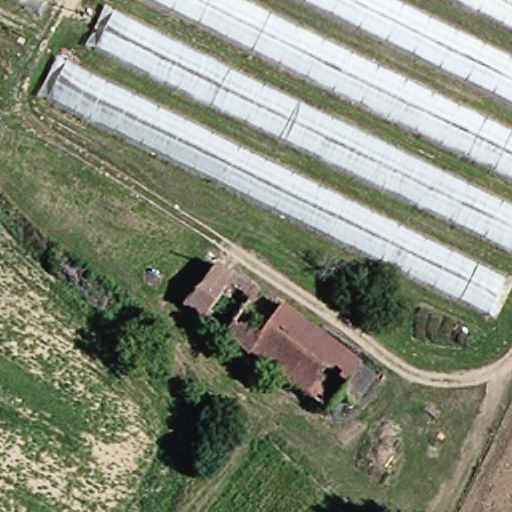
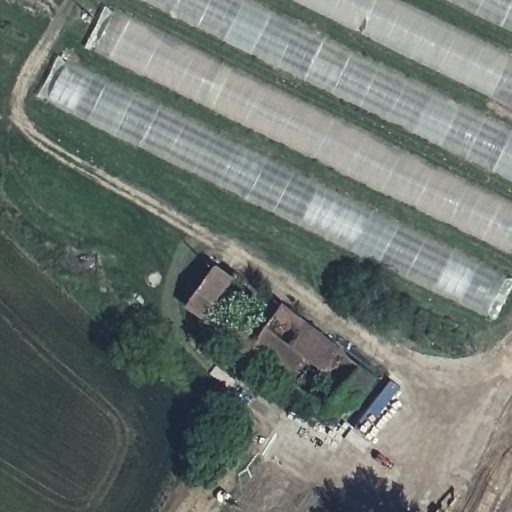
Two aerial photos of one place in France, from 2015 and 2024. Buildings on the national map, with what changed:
unchanged [(34,12),(8,0),(40,0),(34,12)]
unchanged [(512,127),(512,178),(137,0),(251,0),(512,127)]
unchanged [(512,55),(512,108),(291,0),(395,0),(512,55)]
unchanged [(512,31),(447,0),(512,0),(512,31)]
unchanged [(102,5),(512,203),(512,251),(79,47),(102,5)]
unchanged [(490,317),(31,96),(53,56),(510,277),(490,317)]
unchanged [(211,265),(255,291),(231,321),(254,337),(277,306),(358,362),(370,379),(352,403),(335,391),(324,412),(180,306),(211,265)]

